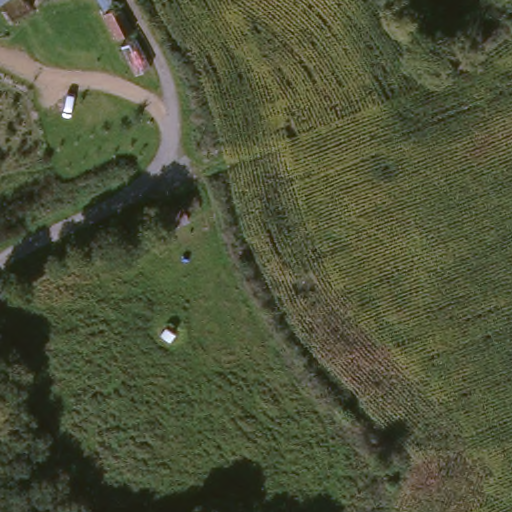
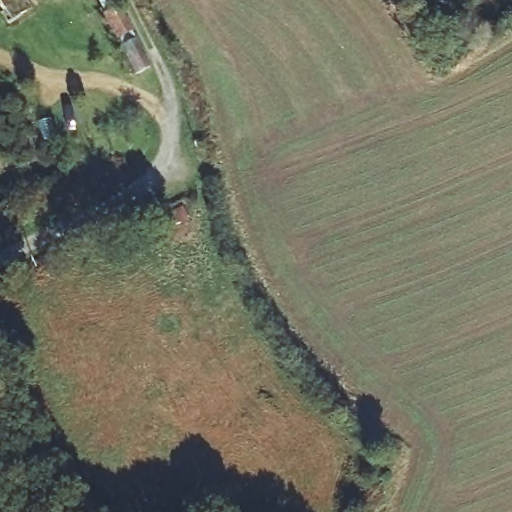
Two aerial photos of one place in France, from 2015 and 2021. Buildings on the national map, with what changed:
unchanged [(0,24),(0,0),(17,0),(23,14),(0,24)]
unchanged [(114,42),(111,43),(99,16),(114,8),(129,37),(114,42)]

